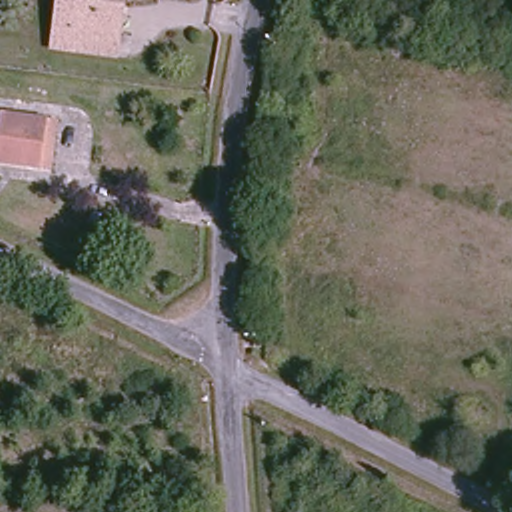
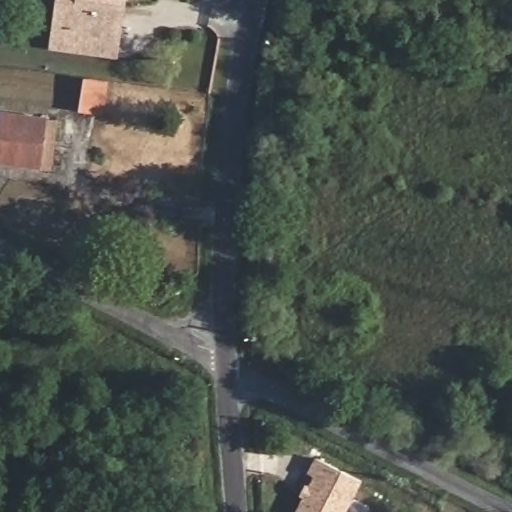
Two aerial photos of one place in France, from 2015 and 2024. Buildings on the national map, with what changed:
unchanged [(111,34),(72,28),(70,50),(44,47),(49,0),(131,0),(130,6),(115,4),(111,34)]
unchanged [(126,36),(122,35),(120,59),(70,50),(72,28),(111,34),(115,4),(130,6),(126,36)]
new [(89,82),(112,85),(107,115),(85,111),(89,82)]
unchanged [(42,167),(0,163),(0,113),(44,116),(58,117),(55,167),(42,167)]
new [(297,512),(322,462),(359,481),(343,512),(297,512)]

